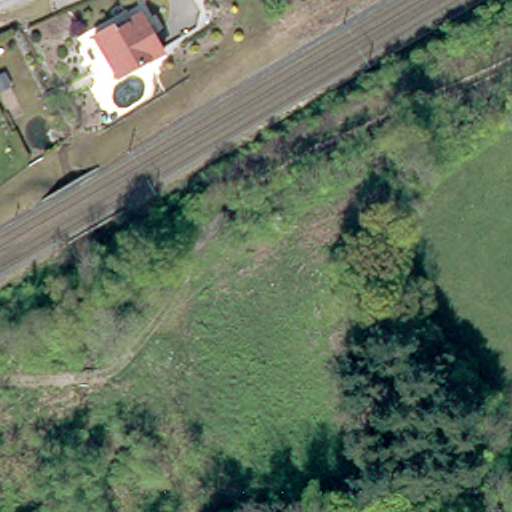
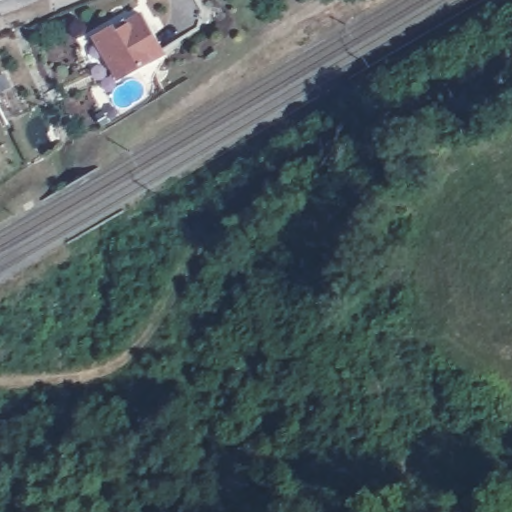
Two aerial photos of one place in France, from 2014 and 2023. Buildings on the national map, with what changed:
unchanged [(125,17),(140,9),(160,49),(116,72),(95,28),(123,12),(125,17)]

